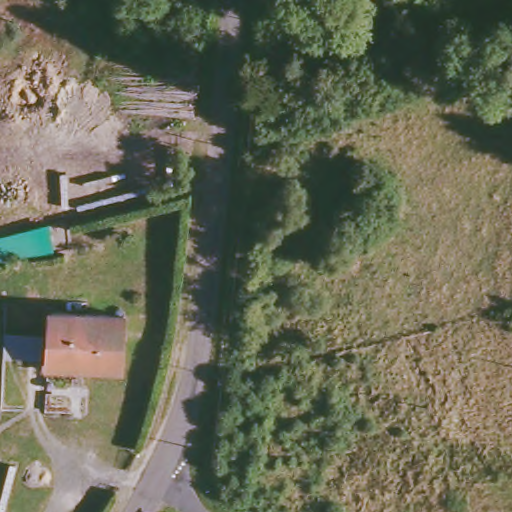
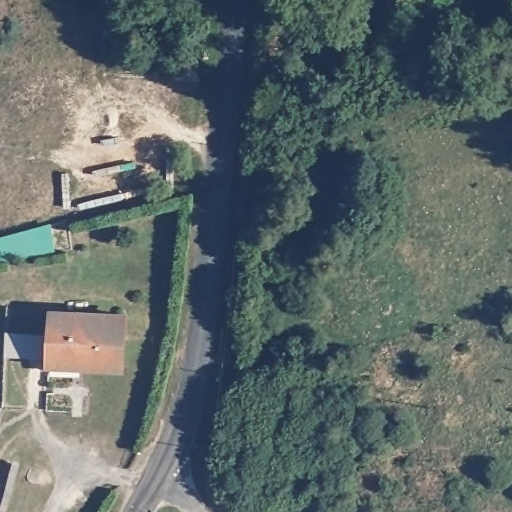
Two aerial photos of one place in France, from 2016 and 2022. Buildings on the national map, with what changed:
unchanged [(43,355),(42,321),(116,322),(116,373),(93,374),(42,372),(43,355)]

